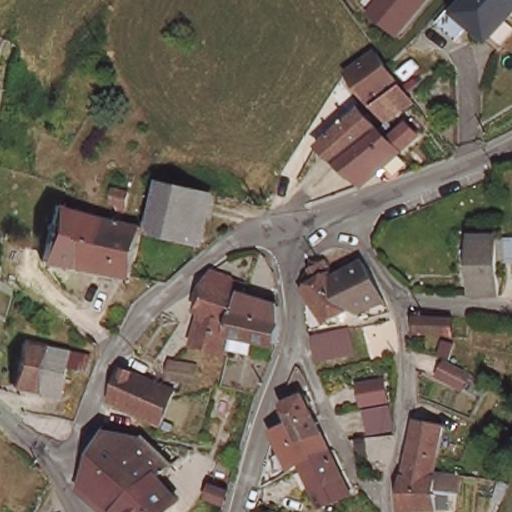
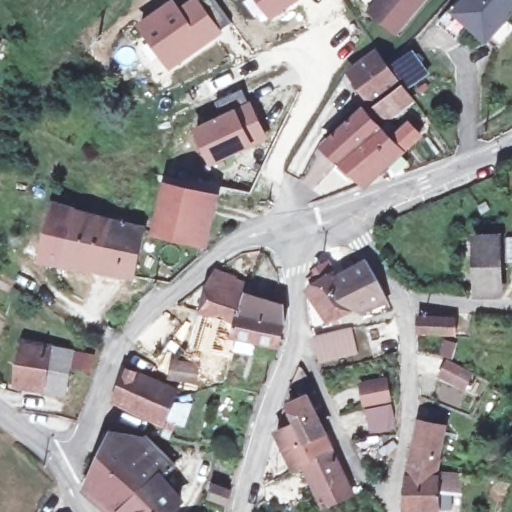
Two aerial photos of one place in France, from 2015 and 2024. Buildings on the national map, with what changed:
new [(170,66),(141,27),(173,4),(180,13),(198,0),(215,0),(231,23),(170,66)]
new [(271,16),(260,0),(294,0),(271,16)]
new [(375,0),(420,0),(392,35),(366,12),(375,0)]
demolished [(405,7),(400,3),(397,0),(411,0),(405,7)]
unchanged [(485,40),(477,31),(470,23),(455,7),(462,0),(512,0),(512,5),(502,13),(507,20),(485,40)]
unchanged [(345,67),(372,48),(392,77),(367,96),(345,67)]
unchanged [(395,82),(406,99),(380,119),(368,103),(370,101),(395,82)]
new [(220,114),(213,100),(242,88),(268,138),(210,165),(191,128),(220,114)]
unchanged [(409,115),(395,125),(389,115),(402,106),(409,115)]
unchanged [(353,109),(370,125),(336,159),(320,144),(353,109)]
unchanged [(385,139),(403,121),(412,131),(362,184),(336,159),(370,125),(385,139)]
unchanged [(170,177),(211,187),(201,238),(158,227),(170,177)]
unchanged [(43,252),(55,197),(78,203),(67,257),(43,252)]
unchanged [(67,257),(78,203),(113,213),(107,242),(102,264),(67,257)]
unchanged [(136,270),(102,264),(107,242),(113,213),(146,222),(145,224),(136,270)]
unchanged [(0,252),(0,231),(5,232),(0,252)]
unchanged [(504,273),(478,275),(476,235),(501,234),(504,273)]
unchanged [(316,259),(328,252),(337,269),(366,254),(375,269),(377,275),(385,292),(365,300),(364,296),(356,299),(356,298),(325,310),(306,281),(315,277),(310,271),(315,268),(311,262),(316,259)]
unchanged [(198,330),(202,316),(216,274),(250,286),(246,297),(280,309),(283,326),(274,348),(233,340),(230,340),(225,357),(192,346),(198,330)]
unchanged [(422,317),(462,320),(462,338),(421,336),(422,317)]
unchanged [(353,332),(357,333),(361,356),(325,363),(321,338),(353,332)]
unchanged [(16,358),(21,338),(70,348),(92,353),(89,367),(68,364),(67,368),(61,391),(38,386),(11,381),(16,358)]
unchanged [(198,357),(196,373),(171,369),(174,353),(198,357)]
unchanged [(459,357),(475,364),(470,380),(445,370),(451,354),(459,357)]
unchanged [(122,361),(141,369),(151,373),(173,383),(170,391),(160,417),(138,407),(127,402),(121,418),(105,412),(111,394),(122,361)]
unchanged [(360,383),(385,377),(390,402),(365,407),(360,383)]
unchanged [(318,483),(305,457),(293,462),(275,425),(295,414),(287,399),(305,389),(323,424),(333,442),(347,468),(357,487),(328,501),(318,483)]
unchanged [(371,441),(366,412),(390,407),(396,436),(371,441)]
unchanged [(408,470),(408,466),(411,456),(413,446),(416,432),(421,416),(445,420),(440,451),(435,471),(440,471),(441,462),(465,467),(463,486),(455,485),(454,502),(406,501),(408,470)]
unchanged [(108,424),(141,433),(166,463),(156,471),(136,487),(97,447),(108,424)]
unchanged [(97,447),(136,487),(120,500),(113,506),(83,478),(97,447)]
unchanged [(178,494),(175,497),(157,512),(132,512),(120,500),(136,487),(156,471),(179,494),(178,494)]
unchanged [(233,485),(230,500),(210,495),(215,480),(233,485)]
unchanged [(339,512),(335,512),(336,510),(339,512)]

